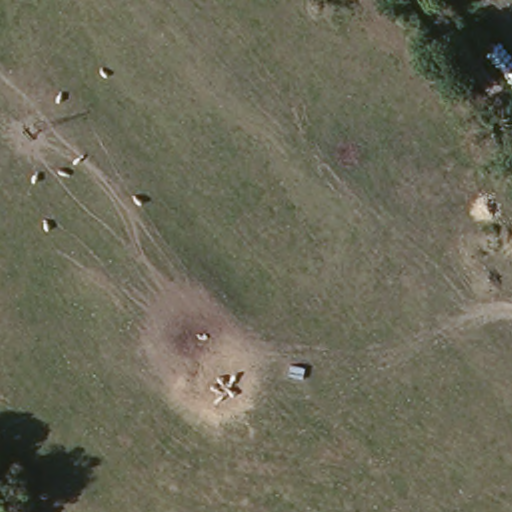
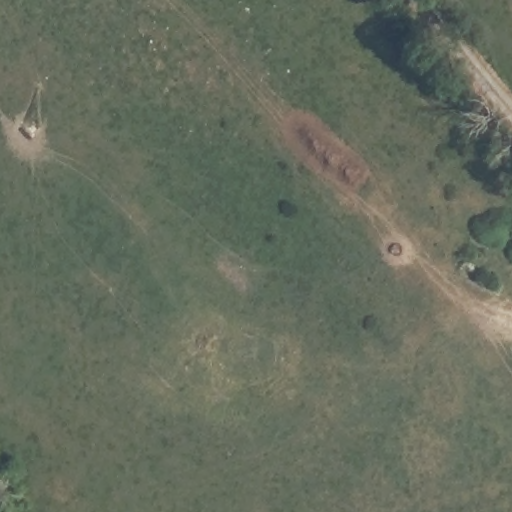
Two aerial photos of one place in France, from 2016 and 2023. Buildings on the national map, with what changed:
[]

